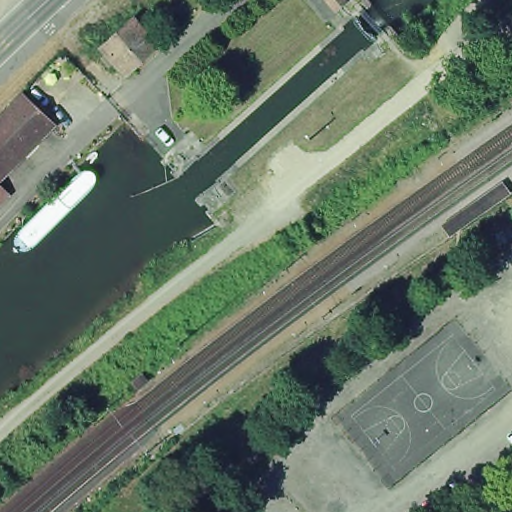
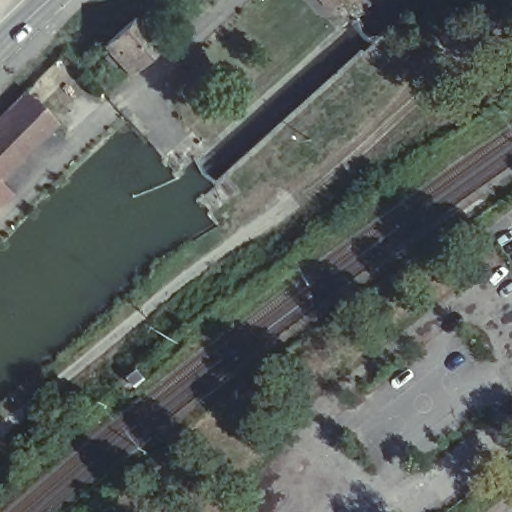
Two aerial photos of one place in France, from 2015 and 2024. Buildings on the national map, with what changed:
unchanged [(101,57),(106,52),(101,46),(133,18),(158,45),(126,74),(112,58),(107,63),(101,57)]
unchanged [(168,41),(159,32),(168,24),(176,33),(168,41)]
unchanged [(72,103),(0,176),(0,112),(41,73),(43,74),(41,75),(70,103),(71,102),(72,103)]
unchanged [(0,205),(0,185),(9,195),(0,205)]

